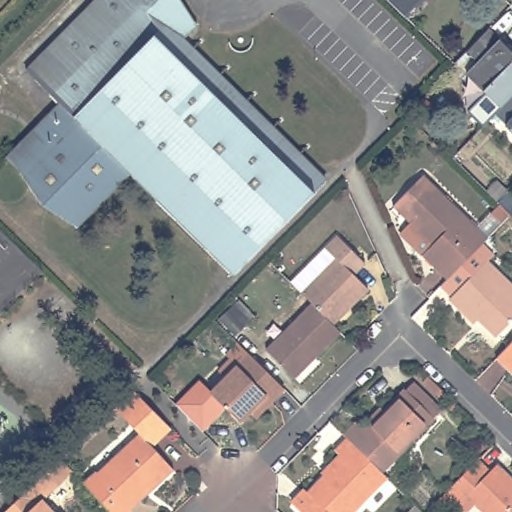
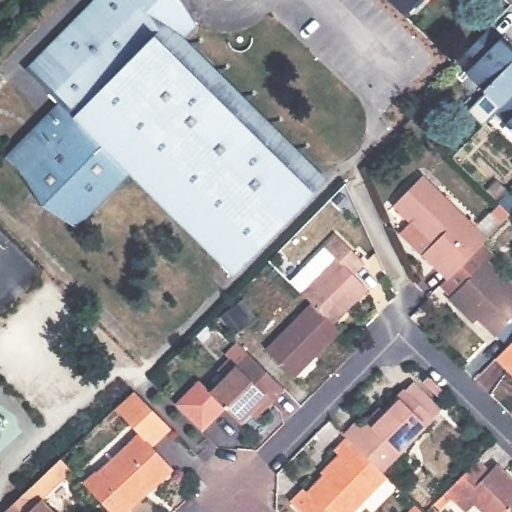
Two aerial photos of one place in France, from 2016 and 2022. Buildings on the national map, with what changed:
unchanged [(187,40),(332,180),(238,274),(135,175),(83,229),(49,209),(30,175),(13,159),(65,105),(31,71),(101,0),(186,0),(202,25),(187,40)]
unchanged [(435,0),(413,21),(391,0),(435,0)]
unchanged [(498,59),(492,53),(488,48),(512,25),(512,104),(483,75),(498,59)]
unchanged [(512,108),(512,109),(511,109),(512,108)]
unchanged [(419,226),(402,209),(432,180),(485,231),(508,207),(512,211),(512,224),(495,241),(487,250),(454,283),(430,259),(440,248),(429,258),(408,237),(419,226)]
unchanged [(372,261),(360,273),(375,287),(340,323),(320,303),(308,292),(297,281),(330,249),(345,234),(372,261)]
unchanged [(498,260),(491,266),(512,286),(512,328),(501,339),(484,322),(479,326),(455,303),(457,301),(446,291),(454,283),(487,250),(498,260)]
unchanged [(274,348),(320,303),(340,323),(347,330),(302,376),(274,348)]
unchanged [(224,397),(236,385),(230,377),(241,365),(237,361),(250,348),(262,360),(297,394),(285,406),(279,400),(252,426),(224,397)]
unchanged [(512,371),(503,362),(512,353),(512,371)]
unchanged [(365,423),(369,428),(408,386),(439,416),(386,470),(352,436),(365,423)]
unchanged [(141,512),(114,512),(90,486),(104,473),(105,475),(146,435),(124,411),(143,393),(181,430),(159,448),(180,471),(139,510),(141,512)]
unchanged [(297,502),(310,490),(312,491),(346,456),(340,449),(352,436),(386,470),(391,475),(354,512),(307,512),(297,502)]
unchanged [(64,464),(75,476),(46,504),(54,512),(13,512),(64,464)]
unchanged [(476,512),(466,512),(457,503),(448,512),(444,512),(440,507),(482,465),(494,476),(496,475),(503,481),(510,476),(512,478),(512,512),(485,512),(480,508),(476,512)]

